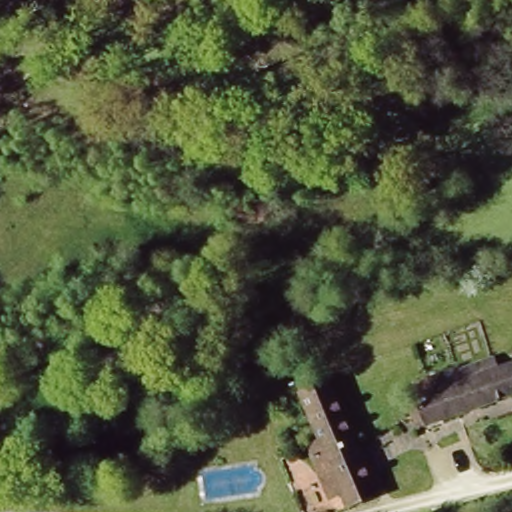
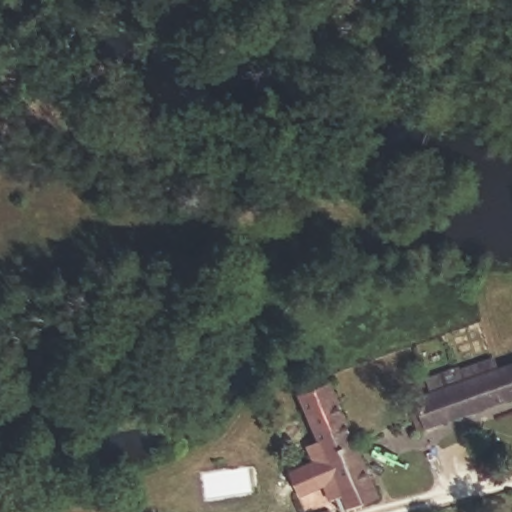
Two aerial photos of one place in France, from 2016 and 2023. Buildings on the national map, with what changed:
unchanged [(425,419),(410,416),(402,388),(512,352),(512,389),(425,419)]
unchanged [(293,396),(328,382),(370,495),(338,507),(327,473),(313,467),(303,438),(293,396)]

